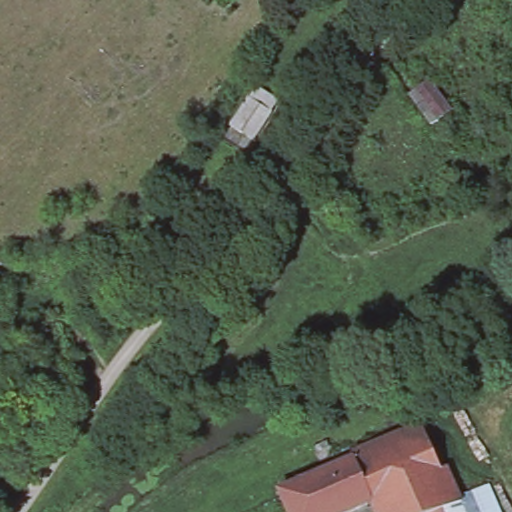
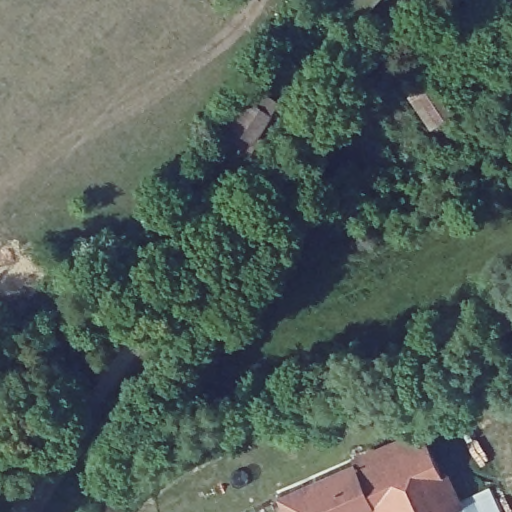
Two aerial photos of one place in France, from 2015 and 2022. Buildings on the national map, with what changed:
unchanged [(415,92),(429,82),(452,113),(438,123),(434,117),(428,121),(413,102),(420,97),(415,92)]
unchanged [(272,114),(254,142),(232,128),(249,101),(272,114)]
unchanged [(425,435),(442,472),(408,487),(373,503),(356,465),(425,435)]
unchanged [(327,442),(339,467),(354,460),(356,465),(373,503),(371,504),(353,512),(288,512),(279,492),(324,473),(314,448),(327,442)]
unchanged [(447,470),(460,498),(466,512),(419,512),(408,487),(442,472),(447,470)]
unchanged [(373,503),(408,487),(419,512),(374,512),(371,504),(373,503)]
unchanged [(498,512),(466,512),(460,498),(488,487),(498,512)]

